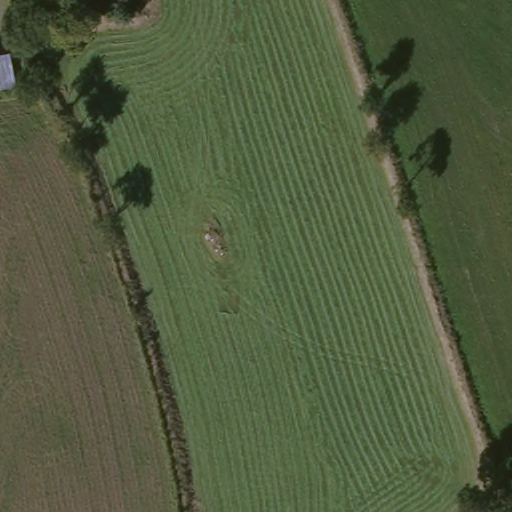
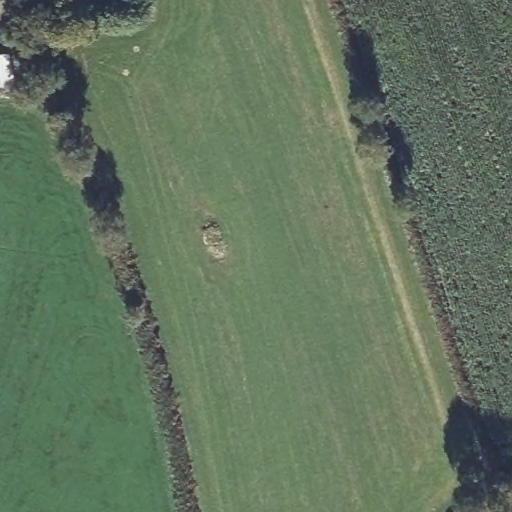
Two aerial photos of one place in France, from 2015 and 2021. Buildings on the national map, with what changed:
unchanged [(14,46),(20,86),(0,89),(0,48),(14,46)]

